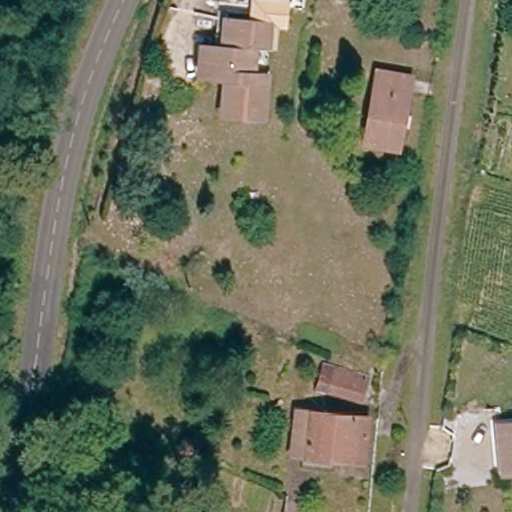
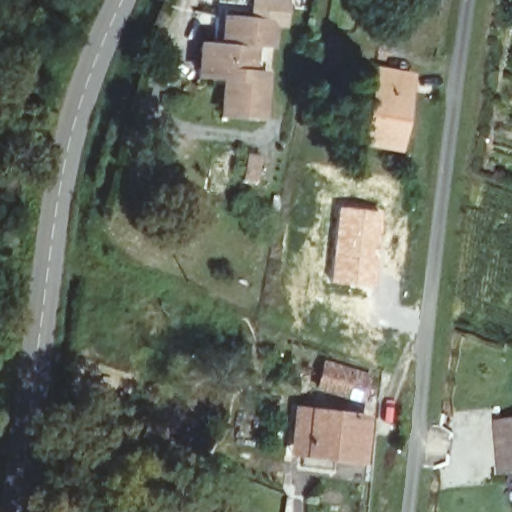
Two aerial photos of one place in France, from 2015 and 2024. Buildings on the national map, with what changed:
unchanged [(268,26),(267,49),(250,49),(250,75),(269,77),(267,121),(223,119),(223,80),(197,80),(198,52),(224,52),(224,24),(268,26)]
unchanged [(414,78),(401,149),(367,144),(379,72),(414,78)]
new [(246,151),(266,155),(260,184),(241,180),(246,151)]
new [(337,206),(379,211),(371,288),(327,282),(337,206)]
unchanged [(358,395),(298,367),(300,361),(308,347),(367,373),(361,386),(358,395)]
unchanged [(302,436),(304,408),(371,415),(366,460),(328,456),(327,464),(310,462),(312,455),(300,454),(302,436)]
unchanged [(504,473),(499,423),(512,422),(512,472),(504,473)]

